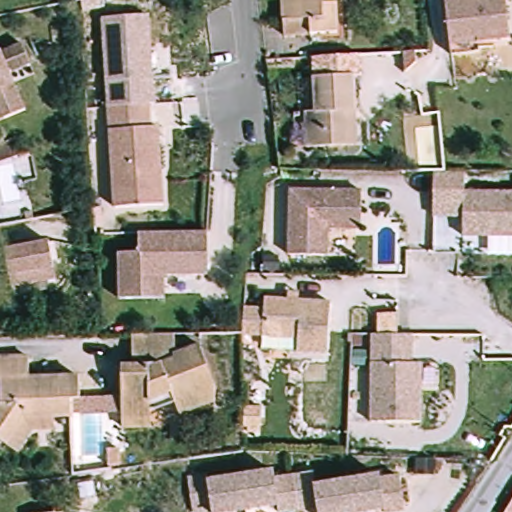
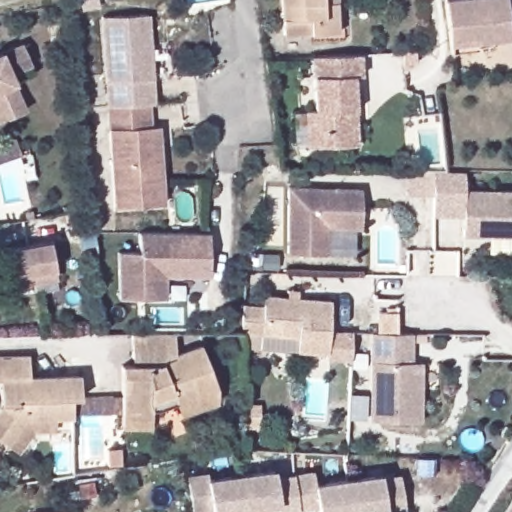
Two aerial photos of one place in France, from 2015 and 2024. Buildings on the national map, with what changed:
unchanged [(338,23),(281,27),(279,0),(336,0),(338,23)]
unchanged [(445,31),(442,0),(503,0),(506,32),(474,35),(446,37),(445,31)]
unchanged [(107,14),(152,11),(157,100),(153,100),(125,102),(122,102),(112,103),(107,14)]
unchanged [(424,53),(414,55),(413,43),(423,42),(424,53)]
unchanged [(5,122),(0,124),(0,64),(25,113),(5,122)]
unchanged [(358,147),(347,148),(310,150),(306,111),(314,110),(311,70),(353,67),(355,106),(356,118),(358,147)]
unchanged [(153,100),(156,164),(164,164),(166,201),(118,204),(112,103),(122,102),(125,102),(153,100)]
unchanged [(468,235),(467,215),(439,215),(438,171),(448,172),(467,173),(467,191),(512,191),(512,235),(468,235)]
unchanged [(361,228),(355,228),(326,227),(326,254),(289,254),(290,188),(361,189),(361,207),(361,228)]
unchanged [(210,275),(166,276),(167,298),(121,299),(120,253),(141,253),(141,233),(209,231),(210,275)]
unchanged [(45,276),(3,275),(3,236),(46,236),(45,276)]
unchanged [(265,301),(265,290),(331,289),(332,341),(301,341),(301,327),(245,328),(245,322),(245,301),(265,301)]
unchanged [(404,322),(404,351),(414,351),(413,410),(363,409),(365,321),(404,322)]
unchanged [(169,336),(168,341),(168,347),(171,352),(194,343),(208,380),(145,403),(146,414),(120,414),(119,361),(151,360),(151,352),(135,352),(135,335),(170,335),(169,336)]
unchanged [(81,374),(83,393),(72,393),(73,410),(28,413),(6,440),(0,436),(0,354),(30,353),(32,375),(81,374)]
unchanged [(272,477),(311,472),(312,484),(377,475),(378,479),(397,476),(401,510),(389,512),(381,512),(381,509),(362,512),(315,512),(315,505),(276,510),(275,502),(248,506),(245,472),(271,469),(272,477)]
unchanged [(186,480),(186,474),(205,472),(206,477),(245,472),(248,506),(210,511),(210,505),(188,508),(186,480)]
unchanged [(65,508),(65,512),(34,512),(34,511),(65,508)]

